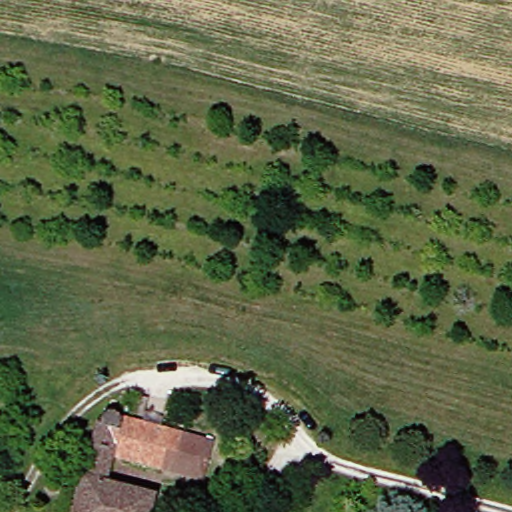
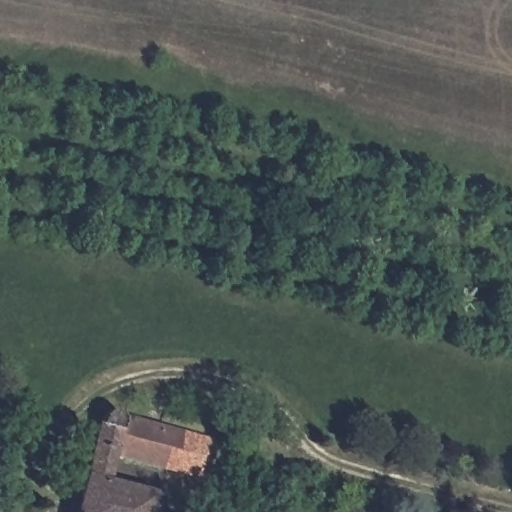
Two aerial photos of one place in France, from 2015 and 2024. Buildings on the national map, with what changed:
unchanged [(118,416),(120,418),(119,429),(210,446),(204,483),(122,459),(114,485),(159,500),(155,512),(79,512),(106,417),(113,413),(115,414),(118,416)]

